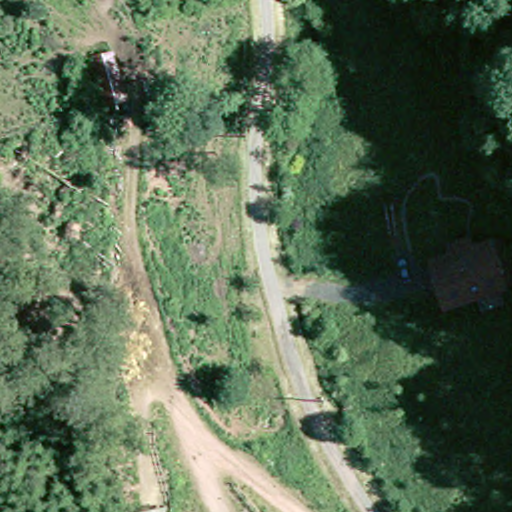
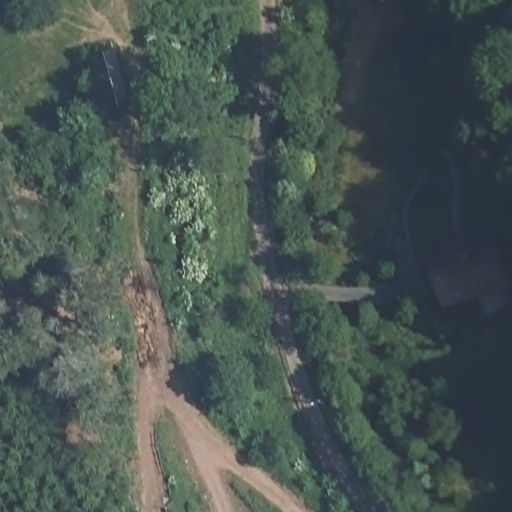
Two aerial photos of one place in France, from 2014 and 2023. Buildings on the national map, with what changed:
unchanged [(116,49),(127,99),(104,103),(92,55),(116,49)]
unchanged [(448,249),(445,240),(472,232),(473,241),(496,237),(506,237),(512,258),(512,289),(509,291),(443,311),(427,256),(448,249)]
unchanged [(165,502),(167,512),(135,512),(135,510),(165,502)]

